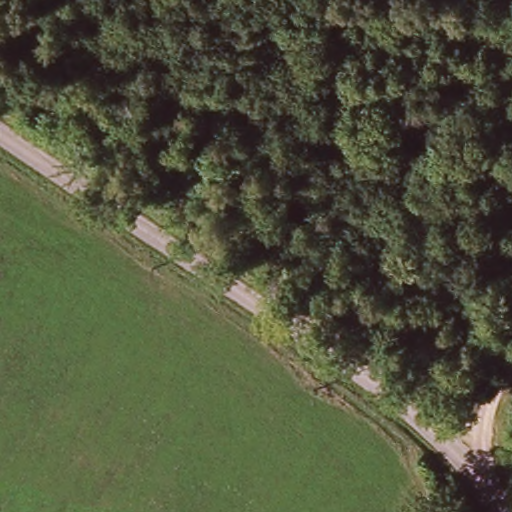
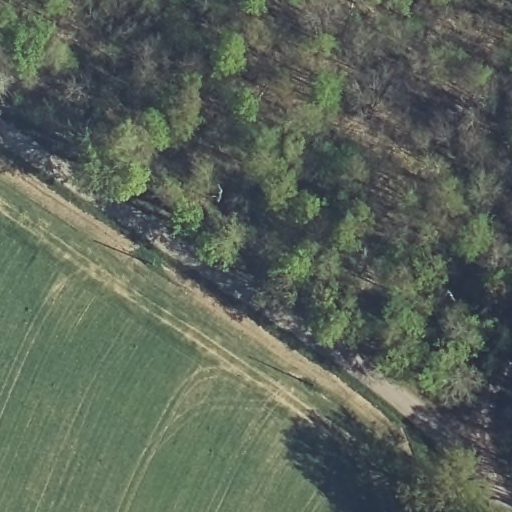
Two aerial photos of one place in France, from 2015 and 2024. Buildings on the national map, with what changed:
[]

